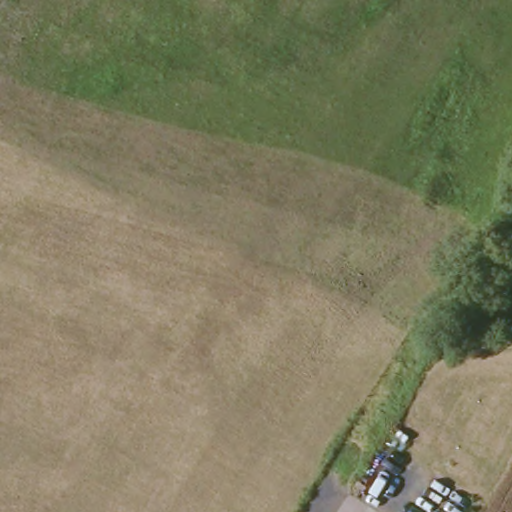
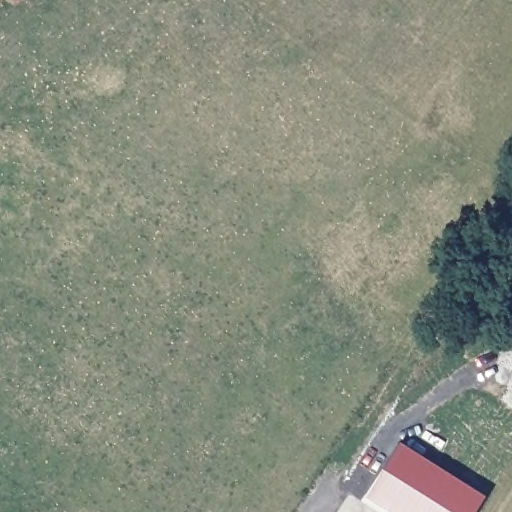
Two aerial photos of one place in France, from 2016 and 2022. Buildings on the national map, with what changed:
new [(480,512),(383,512),(361,498),(400,441),(487,500),(480,512)]

